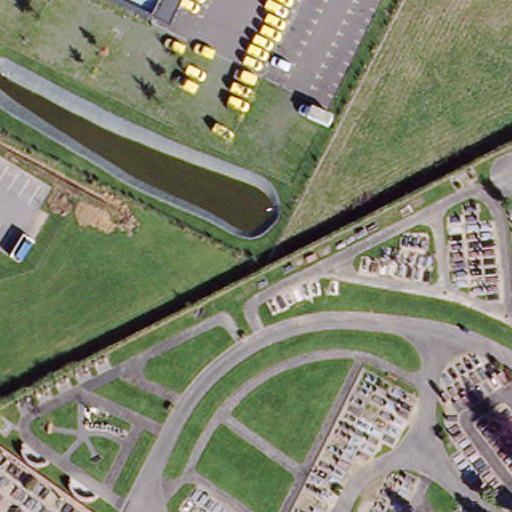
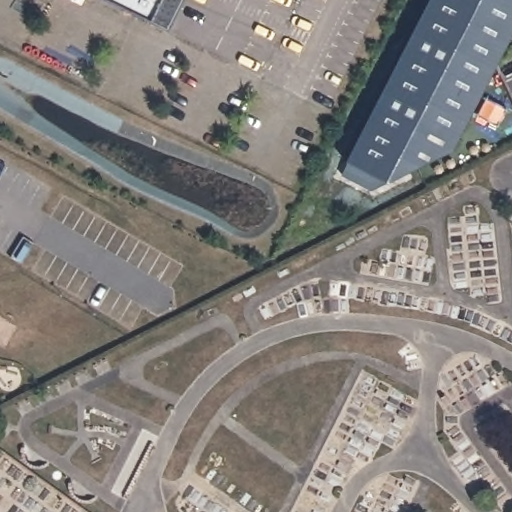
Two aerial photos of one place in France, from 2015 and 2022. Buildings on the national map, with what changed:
unchanged [(99,0),(183,0),(165,34),(99,0)]
new [(512,0),(512,32),(456,144),(370,188),(344,169),(429,0),(512,0)]

